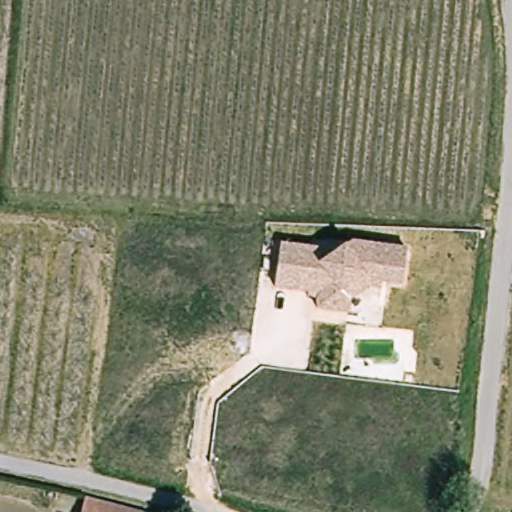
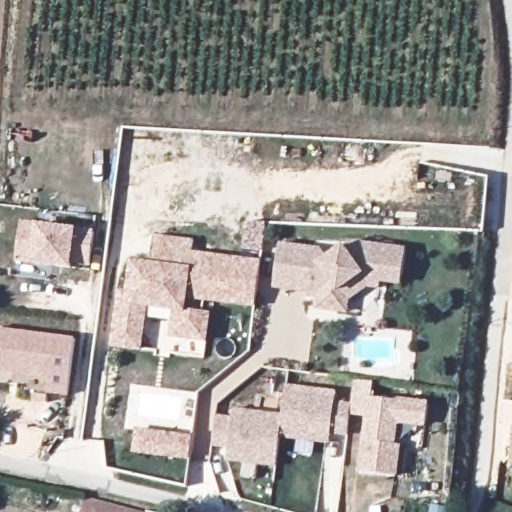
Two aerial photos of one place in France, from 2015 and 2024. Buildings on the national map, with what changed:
new [(36,223),(78,229),(95,231),(90,265),(73,265),(72,270),(31,264),(16,262),(21,221),(36,223)]
new [(129,289),(133,257),(151,260),(154,231),(194,237),(193,249),(261,259),(256,302),(187,294),(185,307),(211,310),(207,338),(173,333),(176,307),(147,303),(141,347),(113,343),(118,297),(120,287),(129,289)]
unchanged [(406,248),(399,283),(380,282),(379,290),(368,290),(350,304),(348,314),(316,311),(316,301),(305,299),(306,293),(275,289),(280,244),(333,254),(343,247),(353,241),(406,248)]
new [(63,398),(43,395),(45,380),(0,372),(0,329),(73,342),(63,398)]
new [(351,401),(355,378),(376,379),(375,390),(436,398),(433,421),(402,417),(399,439),(405,439),(405,440),(401,469),(365,464),(371,413),(351,410),(351,401)]
new [(210,412),(225,414),(226,404),(280,410),(282,383),(336,390),(334,399),(351,401),(351,410),(349,430),(331,427),(330,437),(277,430),(274,457),(223,451),(223,443),(208,441),(210,412)]
new [(136,428),(192,435),(188,461),(133,453),(136,428)]
unchanged [(140,512),(80,512),(84,498),(140,512)]

